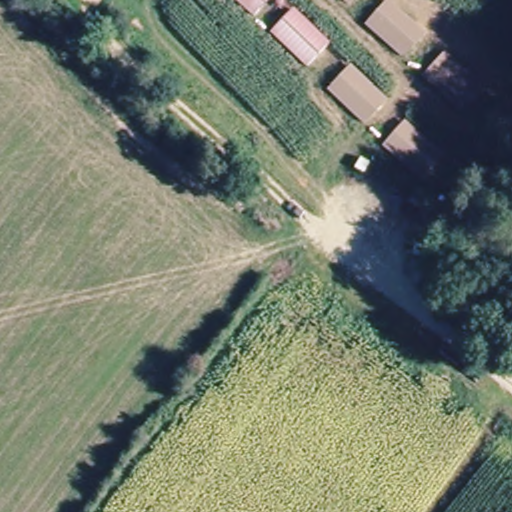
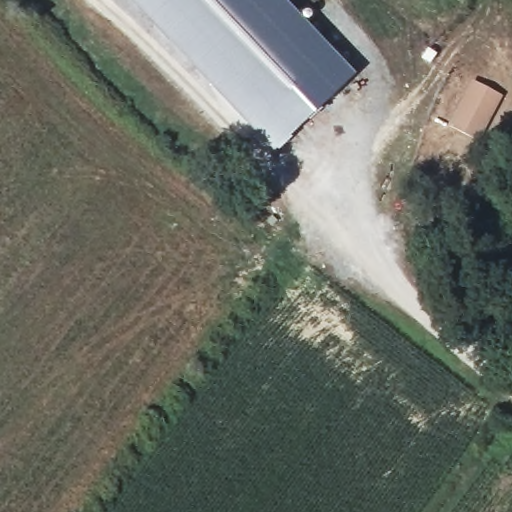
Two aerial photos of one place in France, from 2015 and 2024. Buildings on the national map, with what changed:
new [(273,151),(254,133),(130,0),(288,0),(357,72),(273,151)]
demolished [(268,0),(272,2),(251,30),(213,0),(268,0)]
demolished [(376,14),(389,0),(416,0),(438,20),(416,46),(376,14)]
demolished [(268,47),(290,20),(330,51),(308,77),(268,47)]
demolished [(477,99),(437,65),(461,37),(498,71),(477,99)]
demolished [(329,94),(352,67),(391,97),(370,124),(329,94)]
new [(477,154),(442,144),(461,96),(493,110),(477,154)]
demolished [(393,142),(415,115),(455,143),(434,171),(393,142)]

